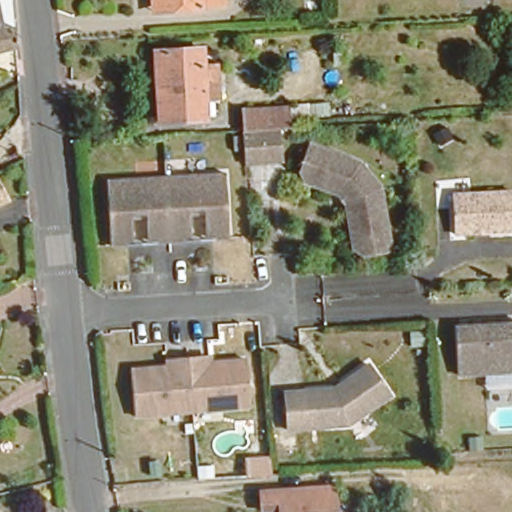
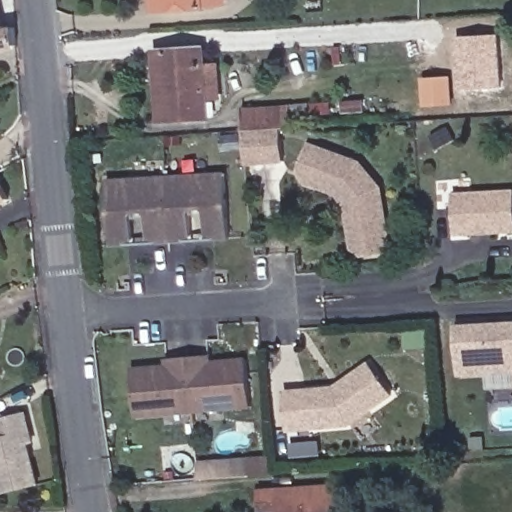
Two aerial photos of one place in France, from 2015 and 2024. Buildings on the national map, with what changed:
unchanged [(148,0),(205,0),(205,10),(165,11),(148,12),(148,0)]
unchanged [(1,16),(10,14),(14,44),(0,49),(0,10),(1,16)]
new [(502,88),(457,90),(454,37),(499,35),(502,88)]
unchanged [(204,109),(159,111),(154,46),(200,44),(204,109)]
unchanged [(244,164),(240,129),(240,127),(237,107),(282,103),(283,125),(278,125),(280,159),(244,164)]
unchanged [(390,251),(364,257),(355,249),(346,210),(329,192),(305,183),(299,178),(309,147),(358,165),(373,182),(378,187),(390,251)]
unchanged [(228,170),(234,237),(211,238),(207,206),(189,208),(192,242),(151,245),(147,212),(128,215),(132,248),(110,249),(104,185),(228,170)]
unchanged [(508,232),(449,235),(448,197),(506,194),(508,232)]
unchanged [(4,202),(0,204),(0,195),(4,202)]
unchanged [(456,326),(512,322),(512,371),(459,375),(456,326)]
unchanged [(208,363),(248,360),(251,404),(132,413),(127,369),(170,365),(170,356),(206,353),(208,363)]
unchanged [(279,395),(330,388),(364,366),(382,399),(345,426),(285,433),(279,395)]
new [(29,443),(39,484),(0,495),(0,418),(27,412),(34,442),(29,443)]
unchanged [(254,503),(254,485),(330,484),(330,512),(271,512),(271,503),(254,503)]

